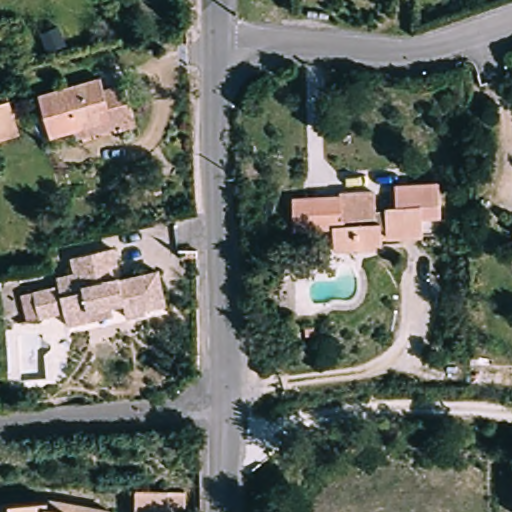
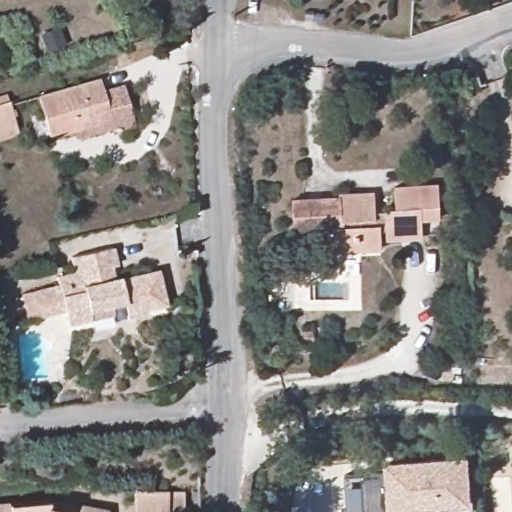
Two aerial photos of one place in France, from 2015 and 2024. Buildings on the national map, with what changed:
unchanged [(77,130),(49,138),(37,97),(99,80),(102,91),(122,86),(134,127),(114,132),(113,130),(79,139),(77,130)]
unchanged [(0,140),(0,96),(5,95),(7,104),(17,135),(0,140)]
unchanged [(343,197),(343,195),(379,193),(380,212),(389,212),(389,209),(400,208),(399,187),(443,185),(444,218),(426,219),(426,237),(390,239),(390,230),(385,230),(386,248),(337,251),(336,228),(298,230),(296,200),(319,199),(343,197)]
unchanged [(95,326),(72,331),(69,317),(32,327),(25,299),(63,290),(61,282),(79,278),(75,263),(117,254),(121,271),(117,272),(119,284),(124,283),(124,285),(162,277),(170,310),(151,315),(152,318),(133,322),(129,308),(115,311),(118,320),(95,326)]
new [(473,512),(436,512),(435,510),(400,512),(346,512),(343,478),(385,474),(384,464),(464,458),(467,499),(472,500),(473,512)]
unchanged [(184,495),(183,512),(134,512),(134,493),(184,495)]
unchanged [(46,502),(100,512),(0,512),(0,507),(46,502)]

